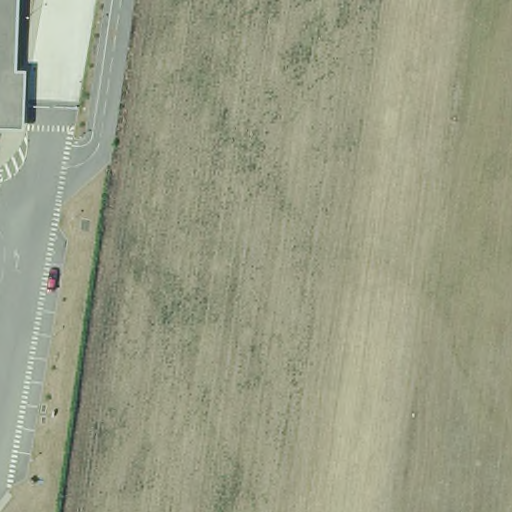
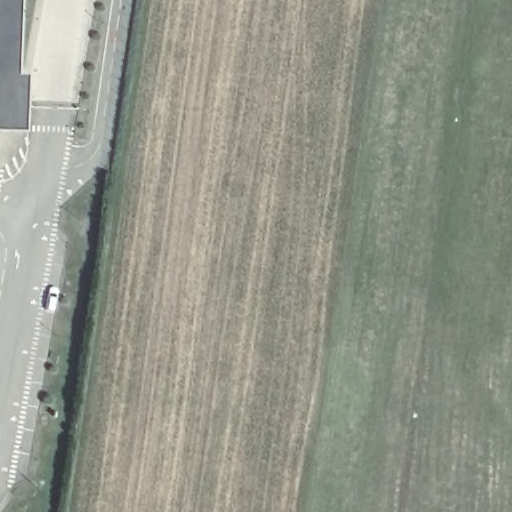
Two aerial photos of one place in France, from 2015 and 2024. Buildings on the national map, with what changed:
unchanged [(27,71),(25,129),(0,129),(0,0),(20,0),(17,71),(27,71)]

